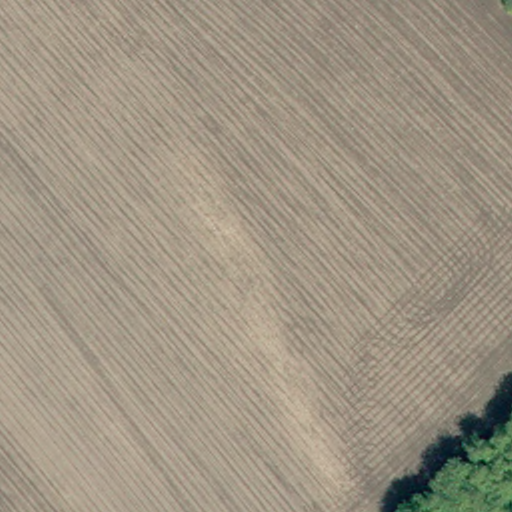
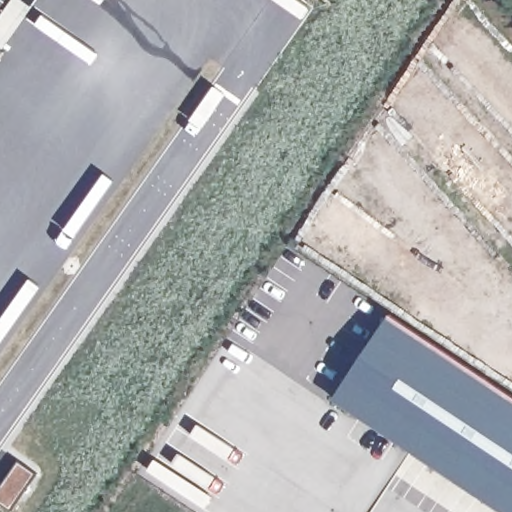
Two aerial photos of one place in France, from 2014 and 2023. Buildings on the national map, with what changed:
new [(36,0),(0,51),(0,16),(11,0),(36,0)]
new [(387,317),(512,399),(512,512),(499,512),(332,401),(387,317)]
new [(35,476),(10,512),(7,512),(0,507),(0,486),(16,462),(35,476)]

